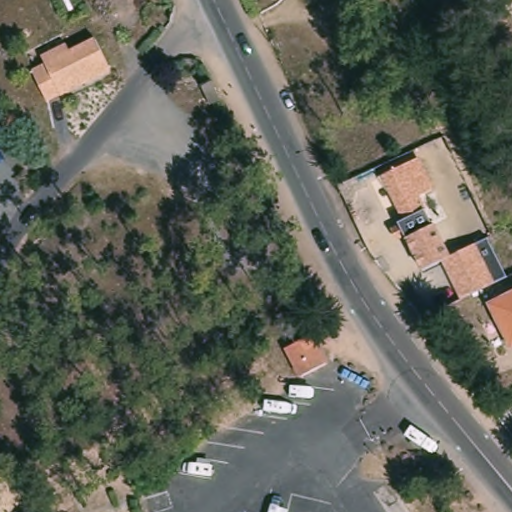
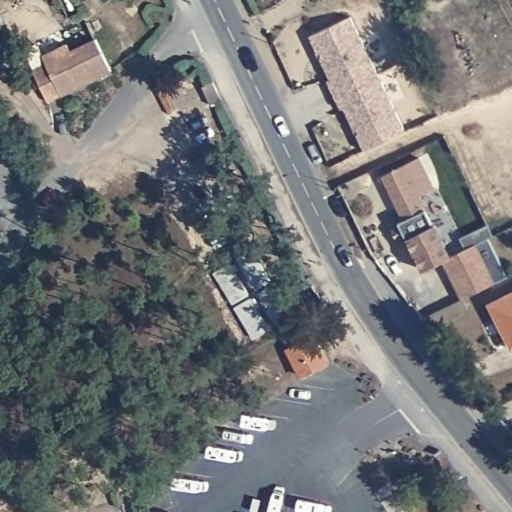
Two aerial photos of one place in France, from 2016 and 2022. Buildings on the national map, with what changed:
new [(351,17),(405,131),(365,150),(345,108),(341,109),(327,81),(330,79),(310,36),(351,17)]
unchanged [(46,105),(29,73),(44,67),(40,59),(64,47),(67,55),(92,41),(110,74),(84,87),(60,98),(46,105)]
unchanged [(212,80),(221,97),(210,103),(200,85),(212,80)]
unchanged [(420,196),(451,254),(489,237),(507,276),(460,297),(442,258),(420,268),(397,221),(403,218),(380,176),(418,157),(433,189),(420,196)]
unchanged [(481,308),(512,293),(512,351),(504,355),(490,325),(481,308)]
unchanged [(291,346),(316,334),(332,362),(306,375),(291,346)]

